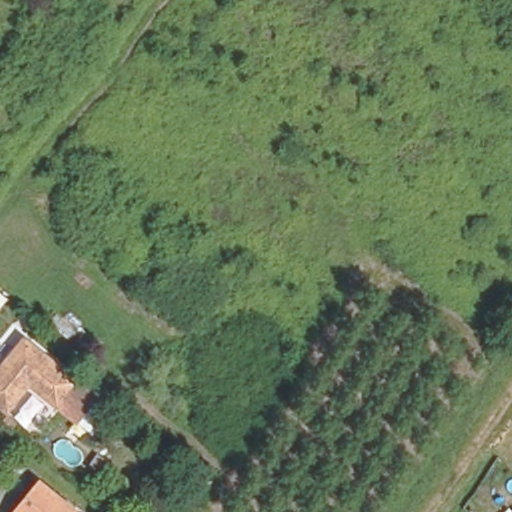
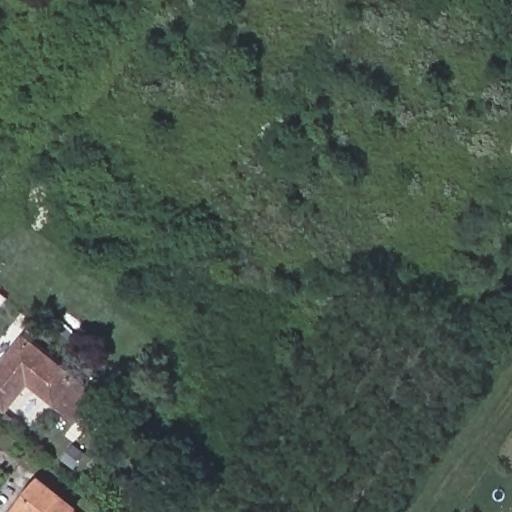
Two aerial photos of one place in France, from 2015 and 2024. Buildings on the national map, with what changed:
unchanged [(1,310),(0,311),(0,310),(1,310)]
unchanged [(23,336),(108,409),(93,431),(81,420),(76,427),(28,390),(5,416),(0,411),(0,361),(23,336)]
unchanged [(74,506),(68,512),(10,512),(28,491),(39,477),(74,506)]

